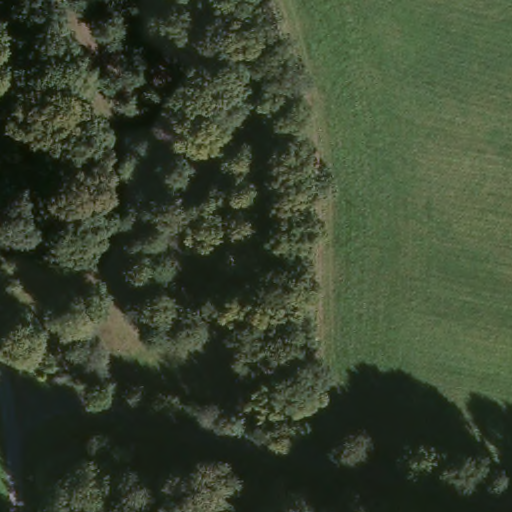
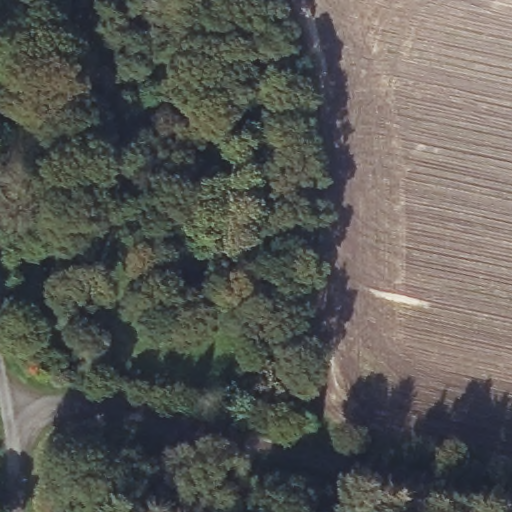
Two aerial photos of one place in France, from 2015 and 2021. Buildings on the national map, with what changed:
[]

